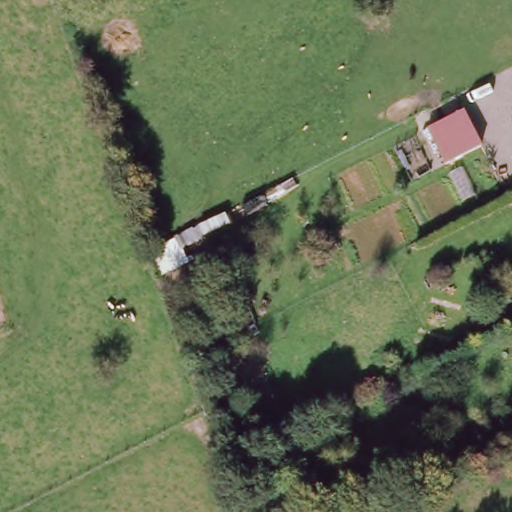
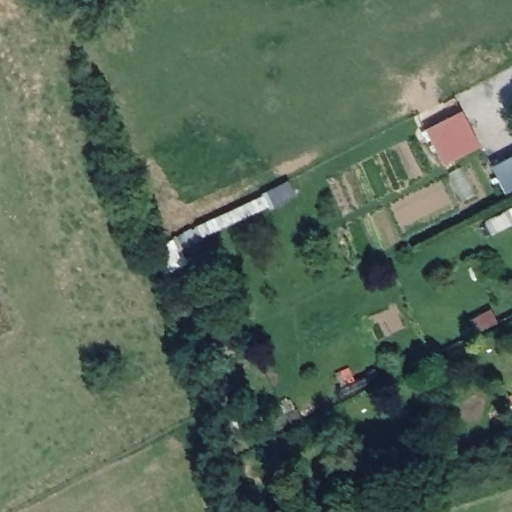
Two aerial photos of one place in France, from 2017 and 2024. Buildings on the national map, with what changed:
unchanged [(454,116),(472,152),(450,162),(433,127),(454,116)]
new [(506,194),(492,166),(512,156),(512,191),(506,194)]

